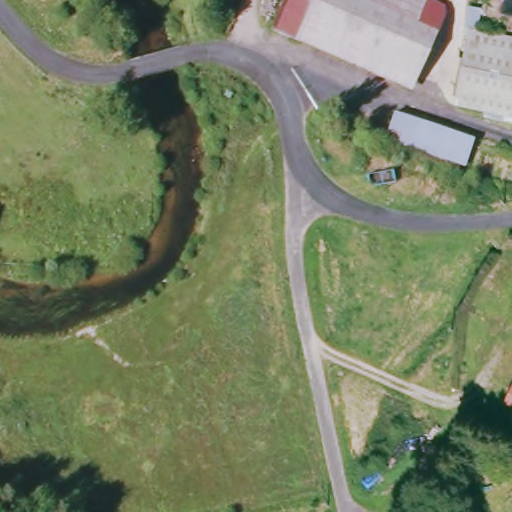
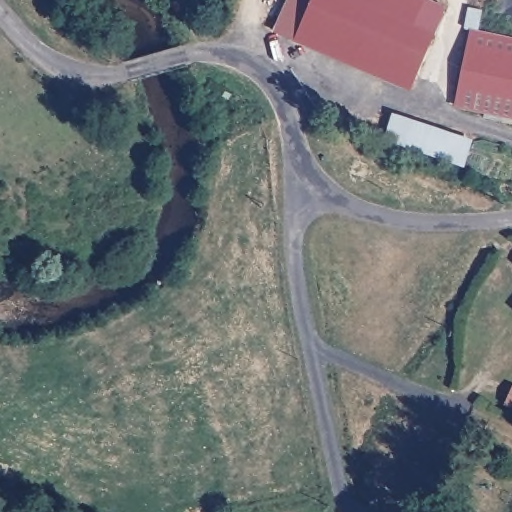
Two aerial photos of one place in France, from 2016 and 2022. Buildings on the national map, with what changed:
unchanged [(434,1),(402,84),(270,34),(284,0),(431,0),(434,1)]
unchanged [(469,32),(512,41),(512,120),(456,109),(469,32)]
unchanged [(462,160),(386,134),(387,131),(392,112),(471,135),(462,159),(462,160)]
unchanged [(512,262),(512,264),(511,263),(512,262)]

